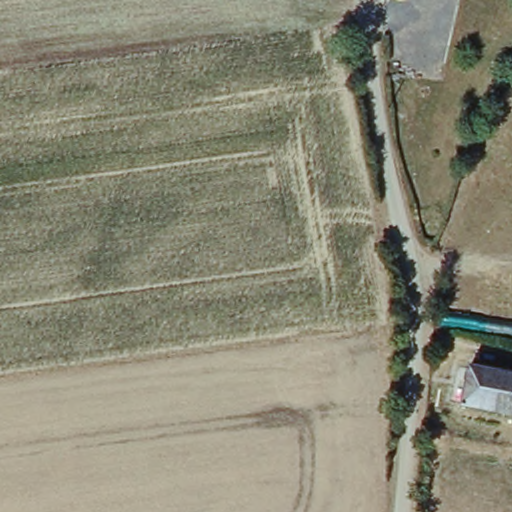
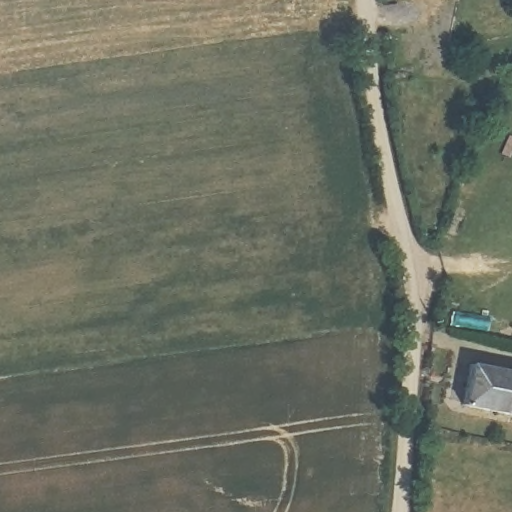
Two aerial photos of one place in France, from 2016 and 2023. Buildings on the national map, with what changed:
unchanged [(512,377),(512,418),(462,409),(469,369),(512,377)]

